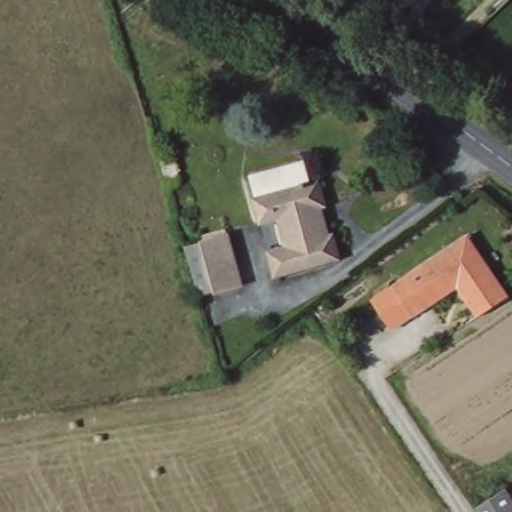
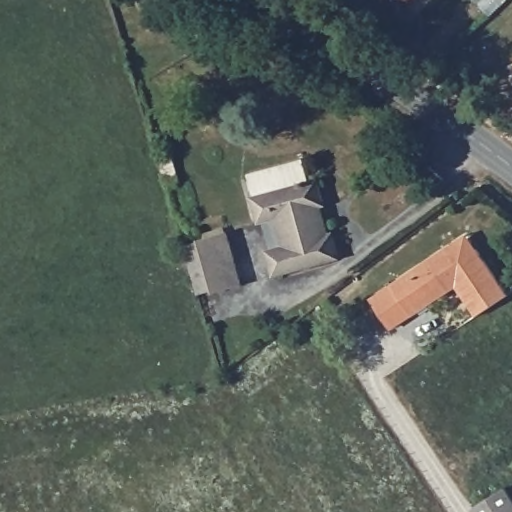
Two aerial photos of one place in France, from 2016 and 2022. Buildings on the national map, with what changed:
unchanged [(409,0),(413,0),(412,2),(409,0)]
unchanged [(254,169),(309,158),(314,181),(319,180),(338,263),(278,275),(274,251),(290,249),(280,218),(265,221),(259,192),(254,169)]
unchanged [(471,233),(512,294),(483,315),(459,287),(395,328),(375,296),(471,233)]
unchanged [(234,235),(245,289),(209,297),(192,243),(234,235)]
unchanged [(512,503),(512,512),(472,512),(472,511),(504,490),(512,503)]

